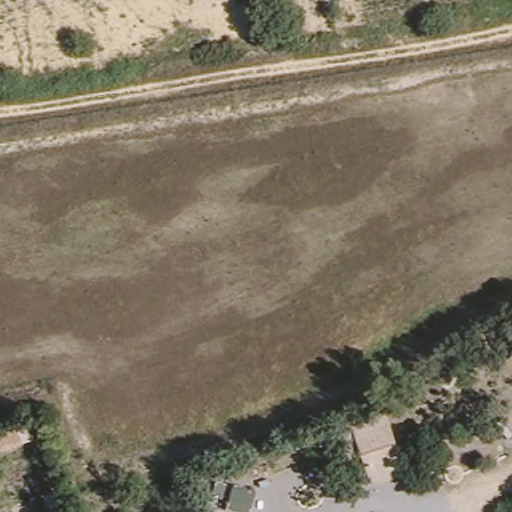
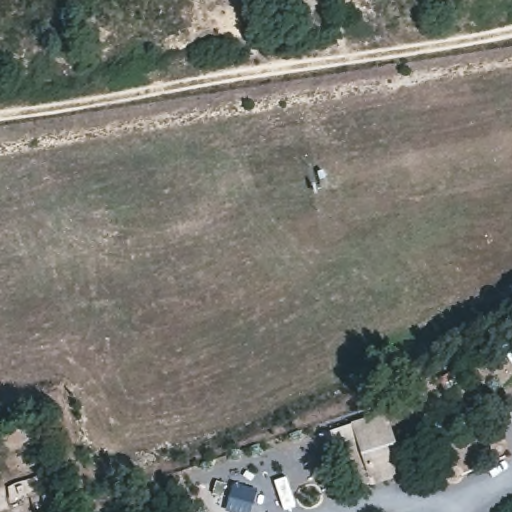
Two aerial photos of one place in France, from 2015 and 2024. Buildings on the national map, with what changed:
unchanged [(404,473),(360,487),(342,427),(384,412),(404,473)]

